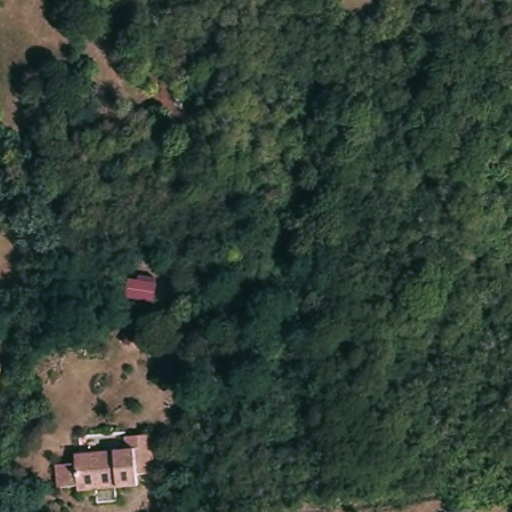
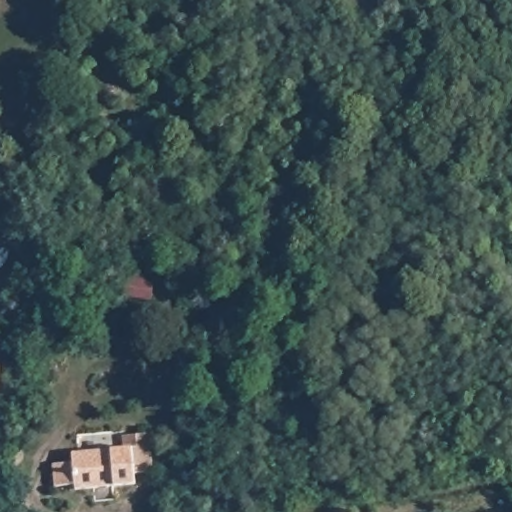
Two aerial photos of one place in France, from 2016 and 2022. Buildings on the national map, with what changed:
unchanged [(153,472),(135,473),(135,483),(75,489),(75,484),(55,486),(53,463),(73,462),(72,452),(123,448),(122,436),(150,433),(153,472)]

